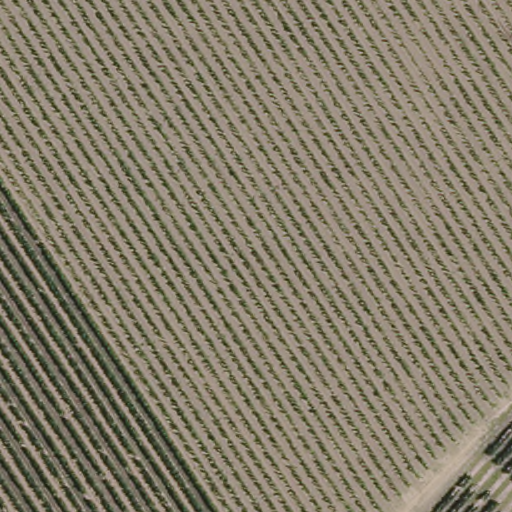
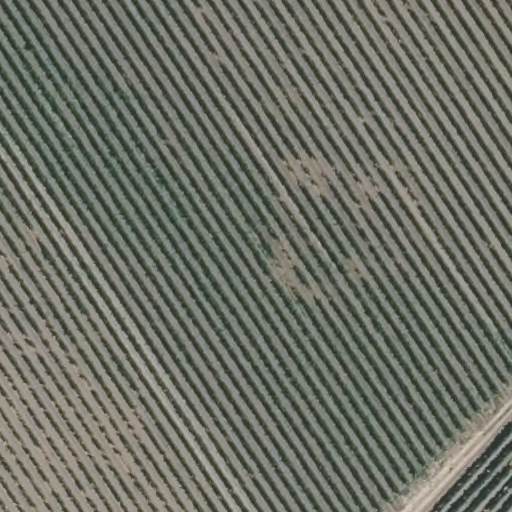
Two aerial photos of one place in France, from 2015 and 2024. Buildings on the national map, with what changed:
[]

